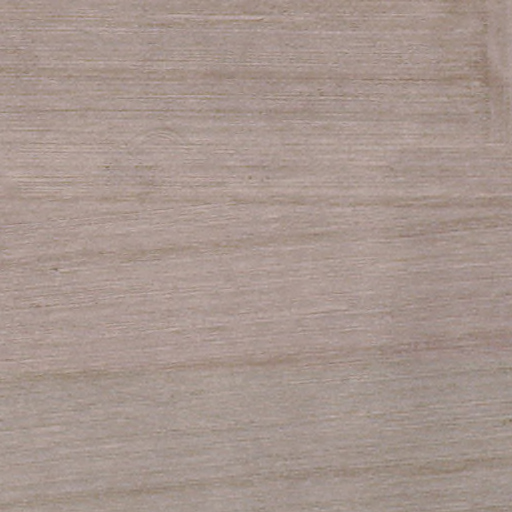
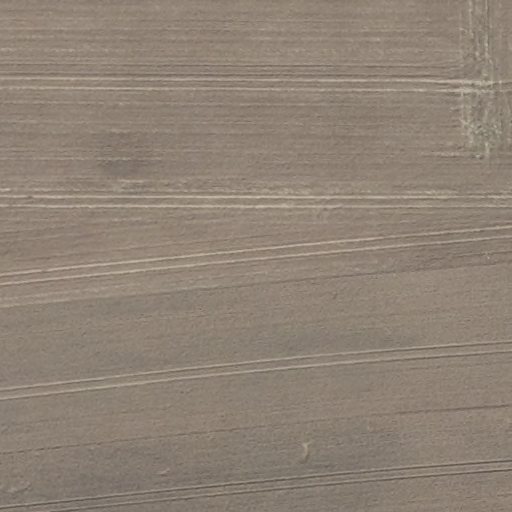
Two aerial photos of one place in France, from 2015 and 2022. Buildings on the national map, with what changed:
[]

